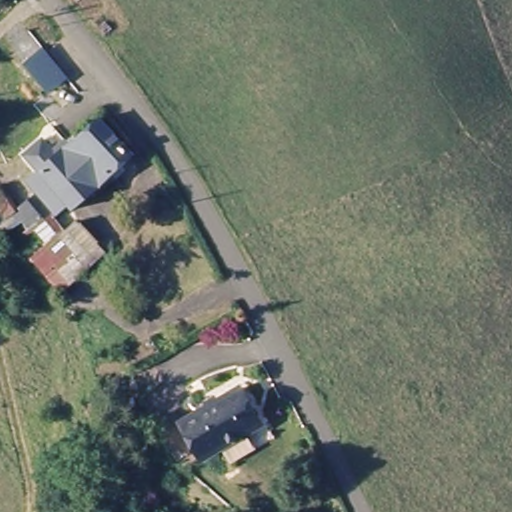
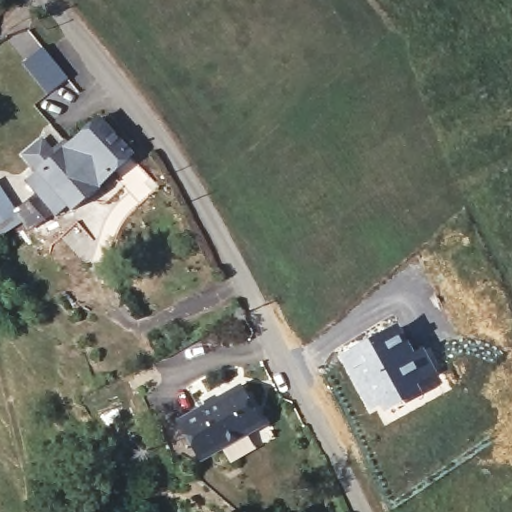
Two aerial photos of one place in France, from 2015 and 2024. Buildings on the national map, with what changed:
unchanged [(37,171),(100,115),(138,158),(102,192),(99,188),(73,211),(72,209),(60,218),(24,182),(36,172),(37,171)]
unchanged [(70,237),(65,232),(87,215),(99,230),(104,235),(83,252),(92,261),(82,268),(75,273),(56,248),(63,242),(70,237)]
new [(398,324),(415,351),(423,347),(443,382),(402,404),(401,402),(383,410),(381,406),(370,412),(341,355),(398,324)]
unchanged [(224,453),(219,446),(204,456),(203,454),(181,418),(190,413),(238,387),(257,421),(264,432),(224,453)]

